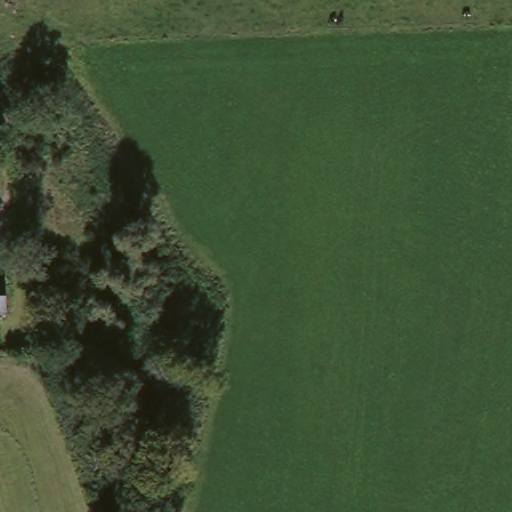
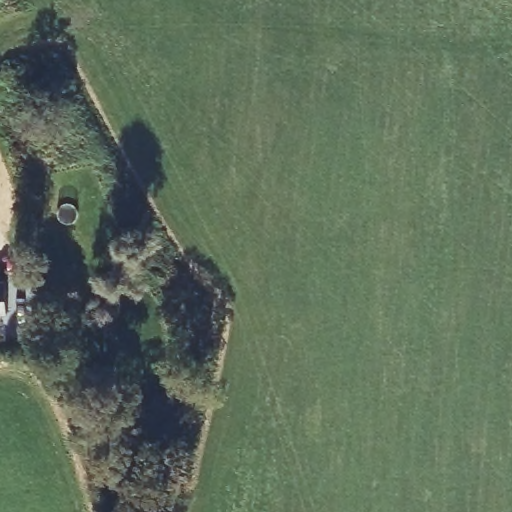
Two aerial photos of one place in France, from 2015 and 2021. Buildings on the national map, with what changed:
unchanged [(9,308),(0,310),(0,279),(8,279),(9,308)]
unchanged [(77,305),(80,313),(81,317),(55,325),(48,310),(75,300),(77,305)]
unchanged [(72,373),(61,357),(87,342),(95,358),(72,373)]

